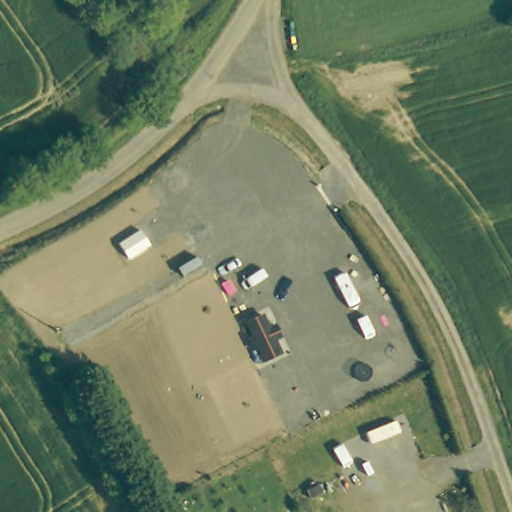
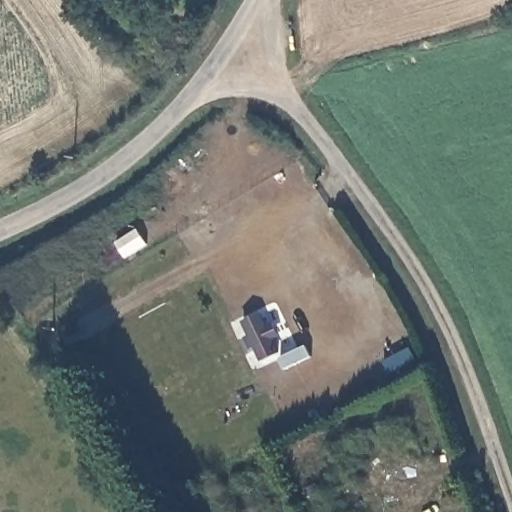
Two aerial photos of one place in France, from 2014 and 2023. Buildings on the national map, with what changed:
unchanged [(262,313),(268,326),(275,323),(281,338),(275,341),(281,355),(261,362),(255,347),(250,350),(245,335),(249,334),(245,321),(262,313)]

